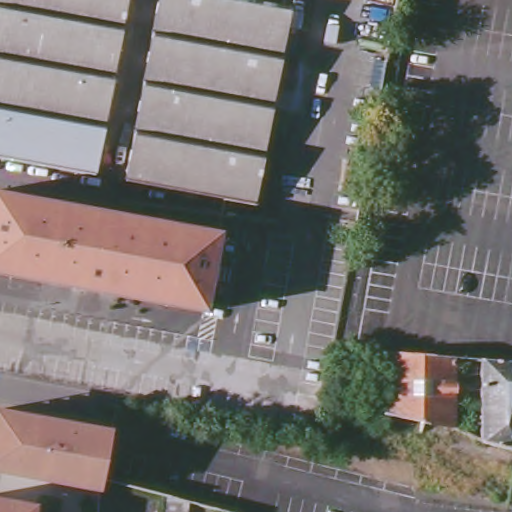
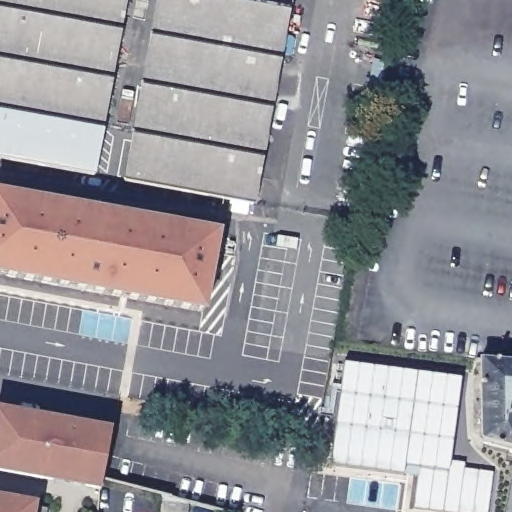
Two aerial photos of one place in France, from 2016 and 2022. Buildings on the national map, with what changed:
unchanged [(95,176),(0,158),(0,0),(127,0),(95,176)]
unchanged [(291,6),(254,205),(124,182),(158,0),(254,0),(291,6)]
demolished [(417,45),(417,10),(502,0),(512,0),(512,34),(487,36),(417,45)]
unchanged [(73,295),(73,298),(51,293),(53,283),(0,273),(0,193),(223,234),(208,312),(78,287),(77,296),(73,295)]
demolished [(423,356),(421,426),(387,413),(388,354),(423,356)]
demolished [(452,427),(421,426),(423,356),(453,358),(452,427)]
unchanged [(512,450),(484,441),(480,357),(512,361),(512,450)]
new [(465,457),(468,465),(491,469),(483,512),(463,512),(425,505),(428,465),(414,464),(413,472),(333,460),(346,360),(465,373),(452,456),(465,457)]
unchanged [(100,481),(49,472),(47,481),(0,473),(0,412),(46,420),(45,425),(71,429),(71,425),(110,432),(100,481)]
unchanged [(190,502),(189,512),(165,512),(166,497),(190,502)]
unchanged [(0,512),(0,501),(47,510),(47,512),(0,512)]

